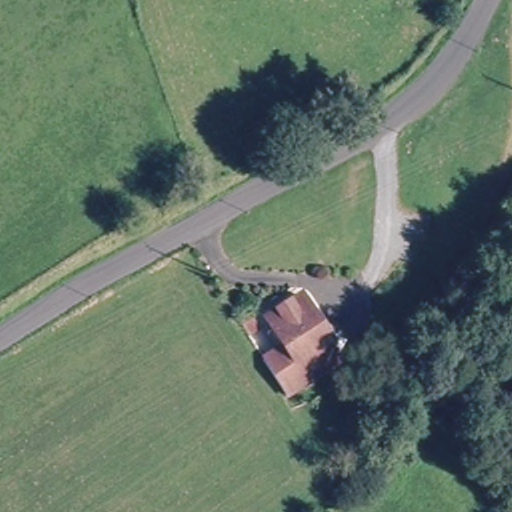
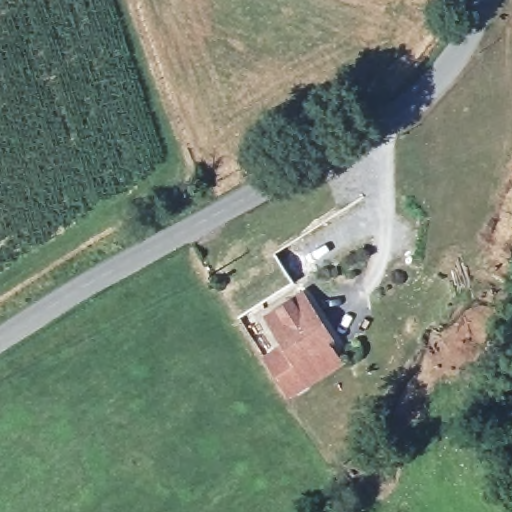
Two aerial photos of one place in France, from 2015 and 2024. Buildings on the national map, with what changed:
unchanged [(265,353),(287,341),(270,314),(303,295),(332,341),(278,374),(265,353)]
unchanged [(289,392),(278,374),(332,341),(344,359),(289,392)]

